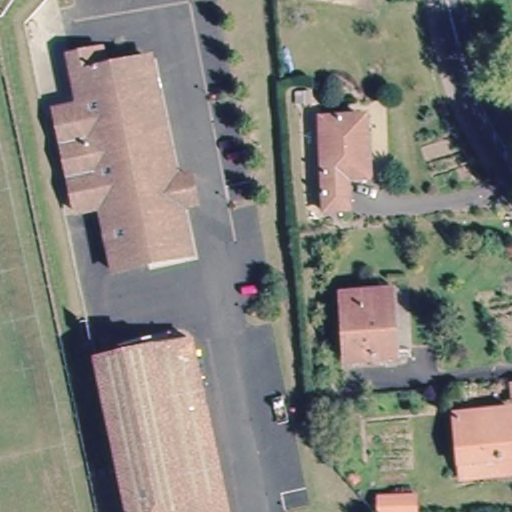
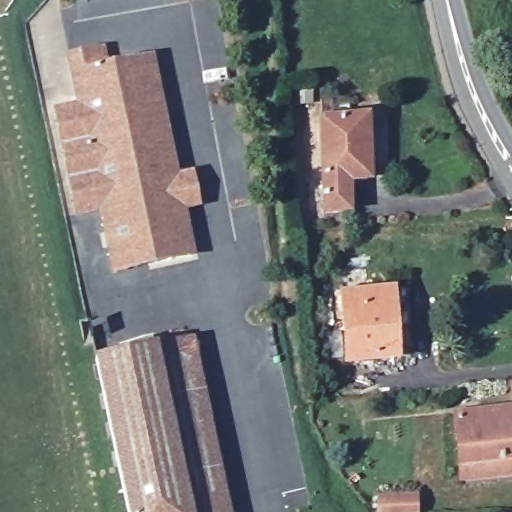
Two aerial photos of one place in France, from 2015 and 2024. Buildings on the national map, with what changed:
unchanged [(177,209),(187,256),(110,272),(96,208),(72,213),(51,111),(74,106),(64,58),(96,51),(100,69),(145,60),(170,178),(185,175),(191,206),(177,209)]
unchanged [(364,179),(343,180),(344,210),(319,211),(318,180),(319,180),(317,120),(361,118),(364,179)]
unchanged [(348,361),(344,297),(390,293),(394,358),(348,361)]
unchanged [(188,512),(154,348),(193,340),(229,512),(188,512)]
unchanged [(154,348),(188,512),(127,512),(95,360),(154,348)]
unchanged [(508,384),(512,384),(512,403),(510,403),(508,384)]
unchanged [(512,457),(508,458),(509,472),(457,477),(452,417),(511,411),(512,427),(512,457)]
unchanged [(415,497),(415,512),(377,512),(377,498),(415,497)]

